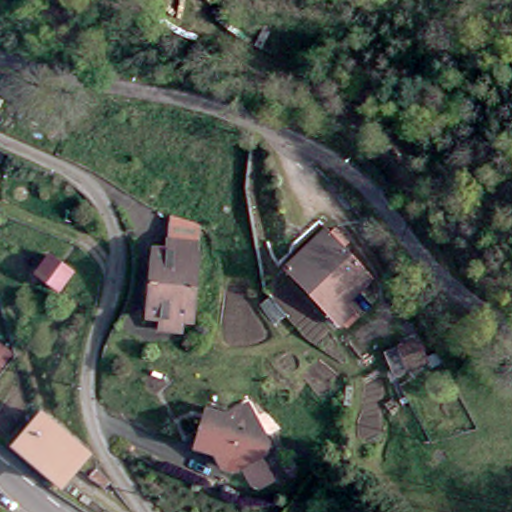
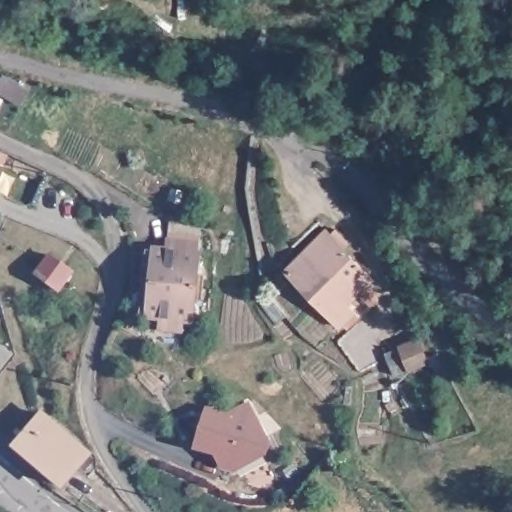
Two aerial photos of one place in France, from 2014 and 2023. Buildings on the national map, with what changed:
unchanged [(153,0),(138,4),(137,0),(153,0)]
unchanged [(26,102),(3,91),(8,77),(32,89),(26,102)]
unchanged [(10,150),(7,156),(0,154),(0,145),(10,150)]
unchanged [(369,271),(358,281),(370,295),(339,324),(281,260),(325,223),(369,271)]
unchanged [(150,266),(160,267),(165,228),(199,235),(192,304),(147,301),(150,266)]
unchanged [(64,287),(36,274),(45,254),(73,266),(64,287)]
unchanged [(175,350),(154,348),(155,336),(142,334),(147,301),(192,304),(187,340),(177,339),(175,350)]
unchanged [(430,335),(437,362),(390,380),(382,349),(430,335)]
unchanged [(5,340),(22,352),(2,376),(0,374),(0,346),(5,340)]
unchanged [(201,435),(211,405),(222,408),(249,398),(264,432),(257,448),(227,461),(217,445),(201,435)]
unchanged [(55,481),(12,444),(38,413),(81,451),(55,481)]
unchanged [(119,484),(108,491),(93,471),(104,464),(119,484)]

